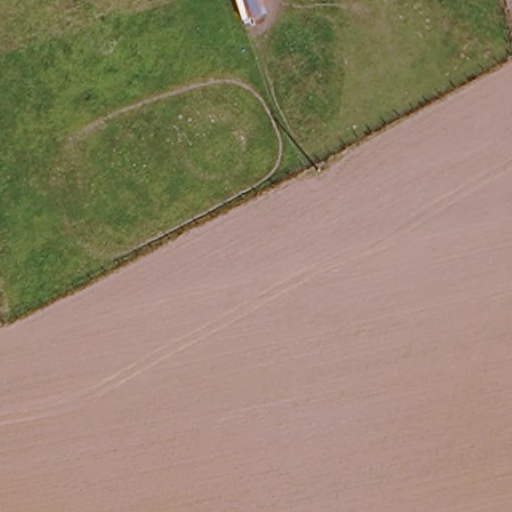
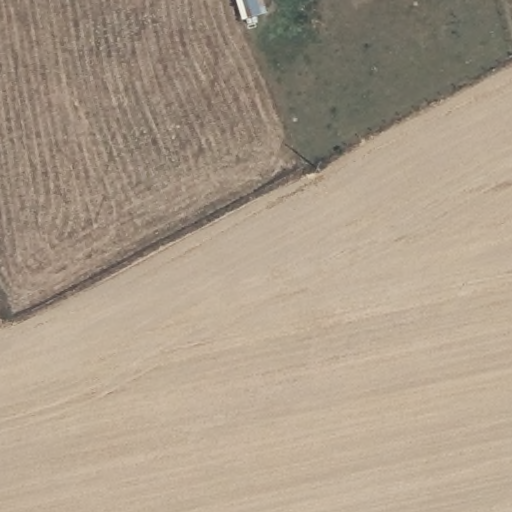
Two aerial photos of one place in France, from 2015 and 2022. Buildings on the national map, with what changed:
[]

